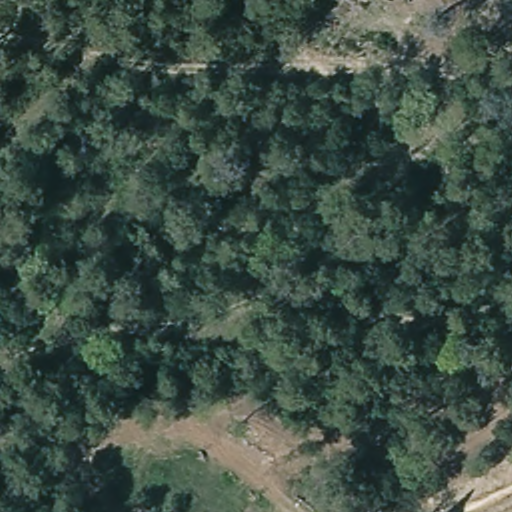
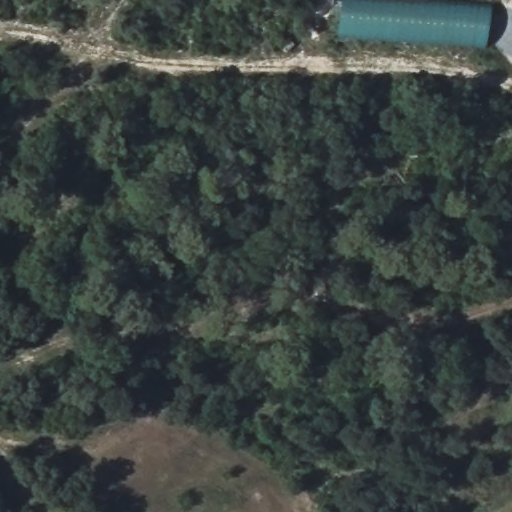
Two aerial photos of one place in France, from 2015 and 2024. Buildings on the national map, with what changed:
new [(492,5),(487,44),(339,33),(343,0),(422,0),(492,5)]

